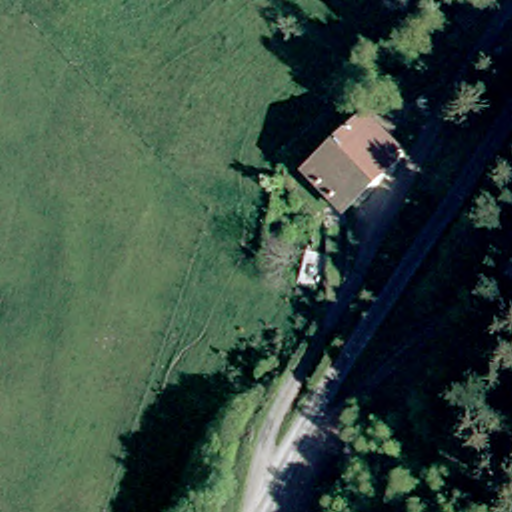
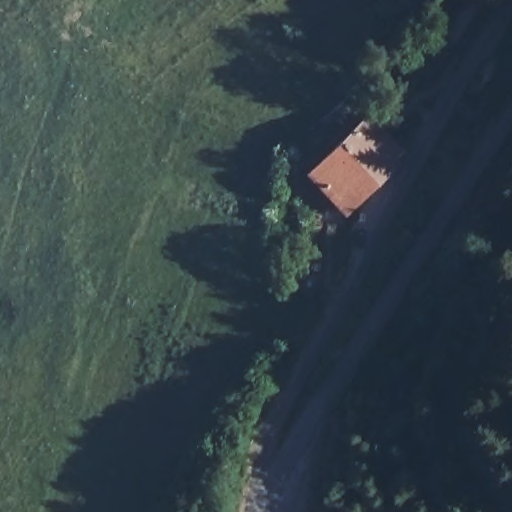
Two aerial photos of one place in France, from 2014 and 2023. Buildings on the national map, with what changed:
unchanged [(367,126),(400,159),(391,167),(396,173),(346,220),(310,182),(367,126)]

